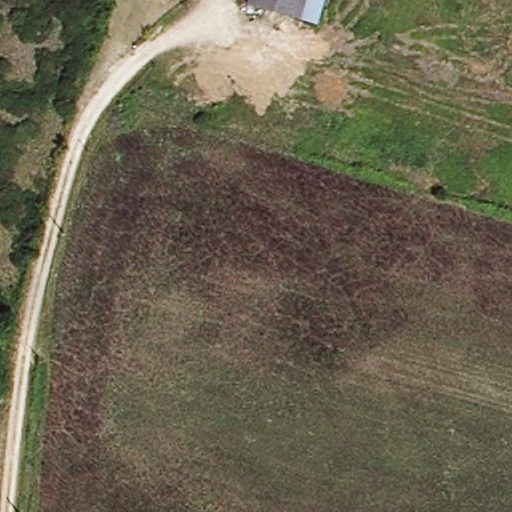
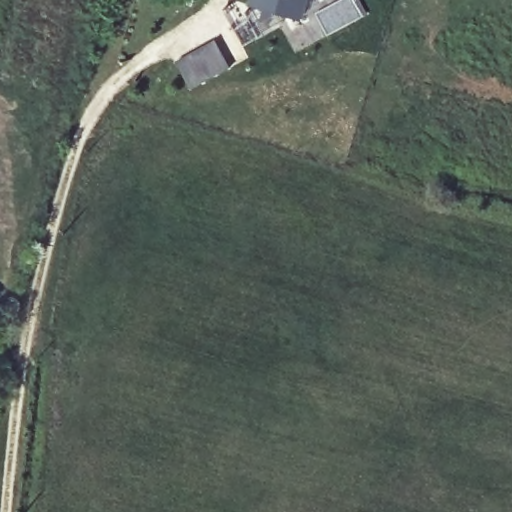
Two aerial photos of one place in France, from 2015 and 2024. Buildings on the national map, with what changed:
unchanged [(297,23),(247,9),(250,0),(304,0),(297,23)]
new [(215,43),(230,68),(191,89),(177,64),(215,43)]

